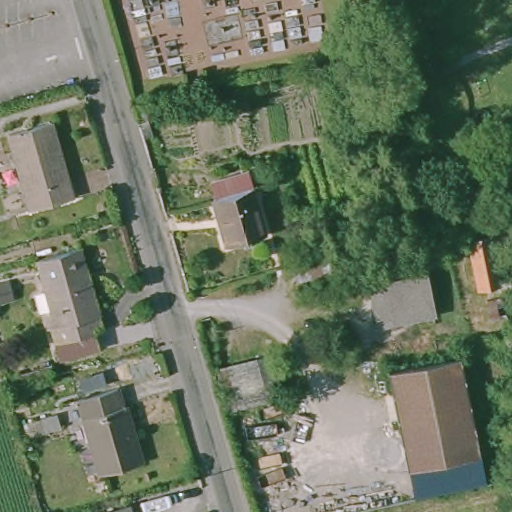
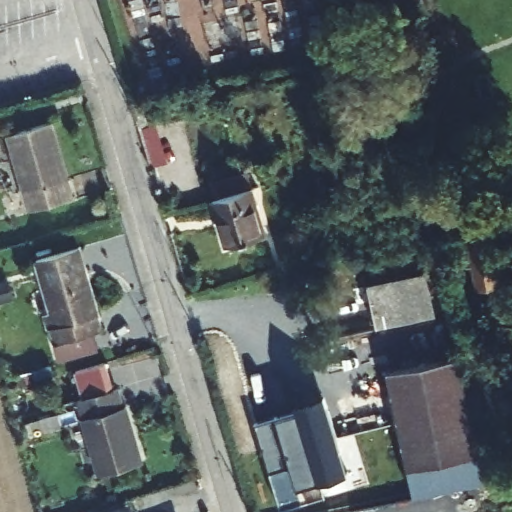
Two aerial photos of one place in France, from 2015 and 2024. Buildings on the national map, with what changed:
unchanged [(367,0),(389,0),(368,5),(367,0)]
unchanged [(78,196),(36,209),(12,132),(57,120),(78,196)]
unchanged [(227,251),(215,206),(220,205),(217,190),(237,185),(245,184),(250,200),(265,244),(227,251)]
unchanged [(52,313),(59,311),(40,247),(79,234),(103,316),(95,320),(100,338),(62,350),(57,332),(59,331),(52,313)]
unchanged [(504,298),(482,302),(470,237),(492,234),(504,298)]
unchanged [(440,315),(380,329),(372,285),(369,286),(365,270),(427,258),(440,315)]
unchanged [(21,298),(0,305),(0,285),(17,280),(21,298)]
unchanged [(484,453),(409,466),(392,370),(464,356),(484,453)]
unchanged [(128,408),(136,408),(149,459),(105,471),(85,400),(124,389),(128,408)]
new [(326,402),(337,440),(340,438),(349,472),(297,487),(290,465),(269,470),(253,423),(326,402)]
new [(135,507),(136,512),(118,512),(135,507)]

